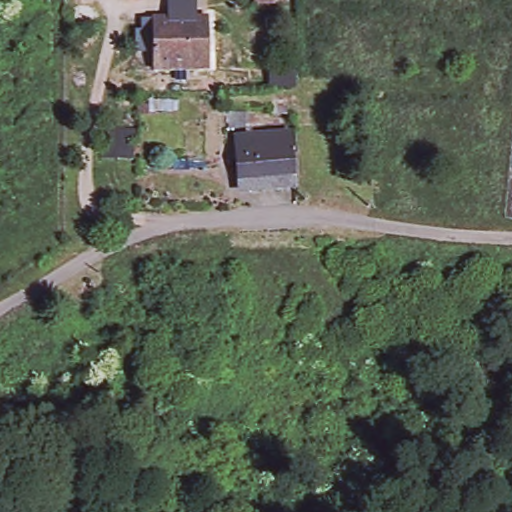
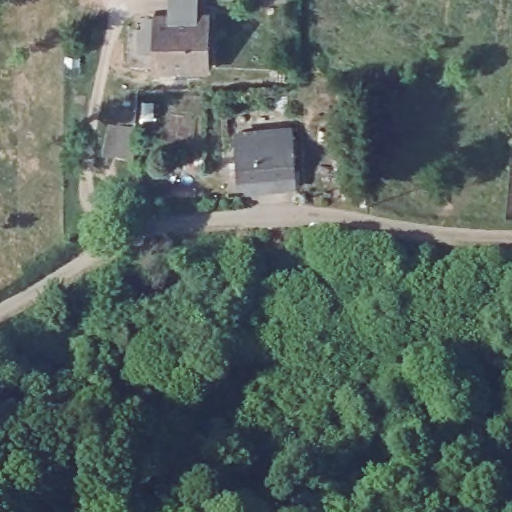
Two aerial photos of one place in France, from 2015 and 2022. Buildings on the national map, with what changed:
unchanged [(154,52),(138,52),(137,52),(137,29),(139,29),(155,30),(155,18),(169,19),(172,19),(172,0),(195,0),(195,19),(197,19),(210,19),(210,34),(210,61),(210,72),(174,72),(154,72),(154,52)]
unchanged [(258,2),(258,0),(289,0),(289,2),(258,2)]
unchanged [(297,188),(239,191),(237,158),(235,132),(240,132),(294,130),(295,155),(296,165),(297,188)]
unchanged [(154,275),(155,292),(119,297),(117,279),(154,275)]

